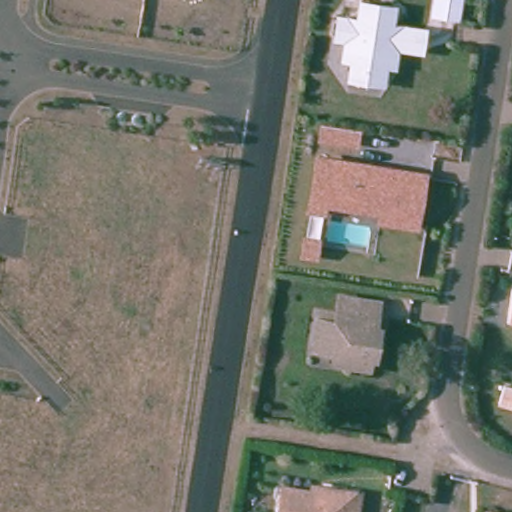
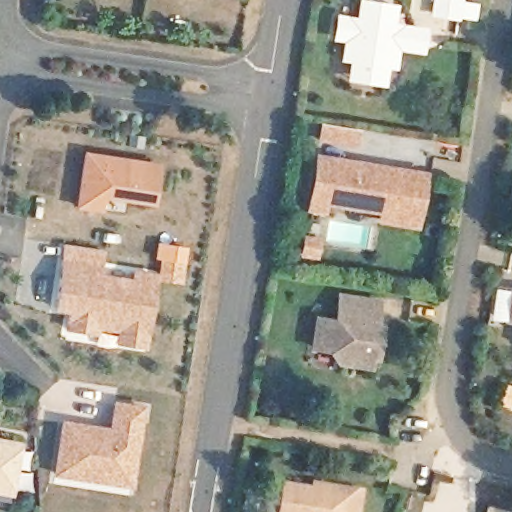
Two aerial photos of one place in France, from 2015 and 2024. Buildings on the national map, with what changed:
unchanged [(343,77),(344,68),(346,58),(337,57),(341,37),(329,36),(332,16),(353,19),(356,0),(359,0),(389,5),(386,24),(394,26),(419,30),(415,50),(391,46),(388,65),(379,64),(377,73),(376,82),(343,77)]
unchanged [(428,13),(431,0),(452,0),(449,17),(428,13)]
new [(103,197),(102,211),(77,207),(85,152),(160,164),(154,205),(103,197)]
unchanged [(420,228),(376,221),(377,213),(328,207),(327,215),(306,212),(314,155),(429,170),(420,228)]
new [(156,272),(146,348),(115,345),(117,331),(100,328),(98,335),(65,330),(66,323),(68,312),(53,310),(61,258),(101,265),(100,273),(131,278),(132,268),(156,272)]
unchanged [(378,323),(374,352),(369,351),(367,361),(339,357),(330,345),(311,342),(316,313),(335,317),(337,307),(339,291),(377,297),(375,313),(373,322),(378,323)]
unchanged [(511,321),(512,314),(512,321),(511,321)]
new [(53,472),(62,420),(109,427),(113,400),(145,405),(133,487),(53,472)]
new [(0,438),(22,442),(12,495),(0,493),(0,438)]
unchanged [(311,491),(312,486),(341,491),(358,493),(356,512),(277,512),(281,486),(311,491)]
unchanged [(497,512),(491,512),(491,511),(497,512)]

